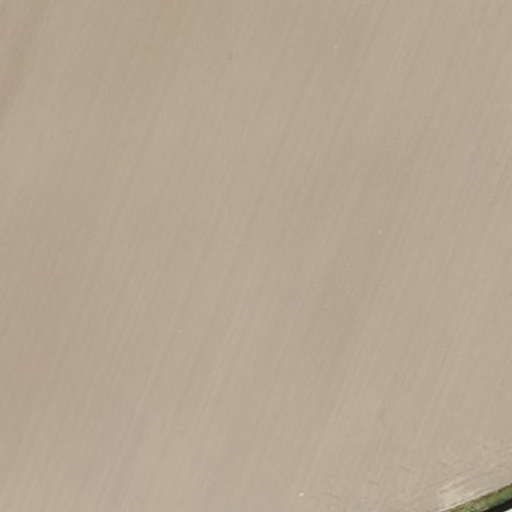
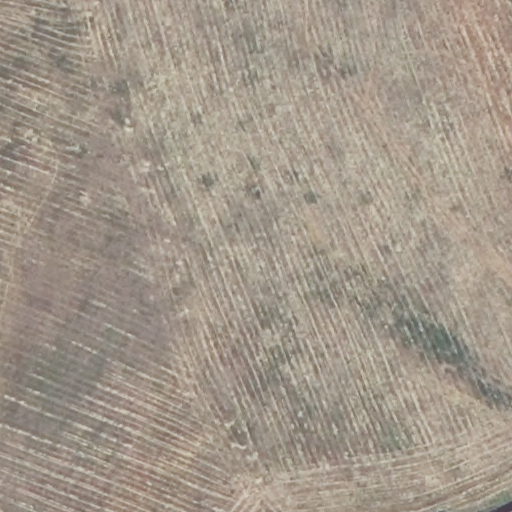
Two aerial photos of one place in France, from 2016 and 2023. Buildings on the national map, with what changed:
unchanged [(512,507),(512,512),(502,512),(512,507)]

